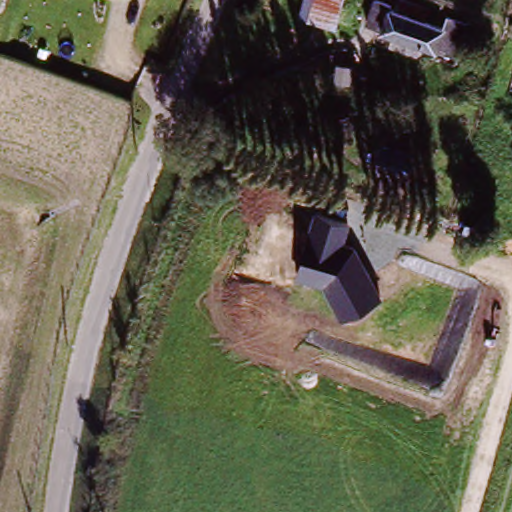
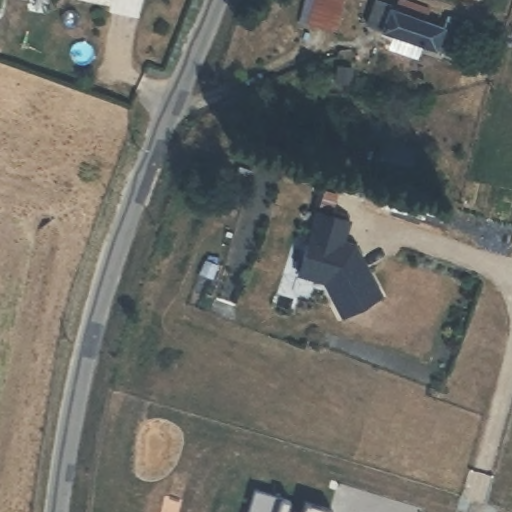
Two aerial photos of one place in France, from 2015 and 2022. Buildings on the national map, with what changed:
unchanged [(308,32),(315,0),(338,0),(329,37),(308,32)]
unchanged [(386,47),(388,38),(370,33),(378,2),(412,11),(410,21),(457,34),(452,56),(415,46),(413,55),(386,47)]
unchanged [(410,184),(373,171),(381,141),(417,151),(410,184)]
unchanged [(297,275),(315,209),(352,222),(346,243),(356,245),(382,296),(342,318),(322,283),(297,275)]
new [(288,499),(285,509),(295,512),(247,512),(254,490),(288,499)]
new [(304,502),(329,509),(331,512),(301,512),(304,502)]

